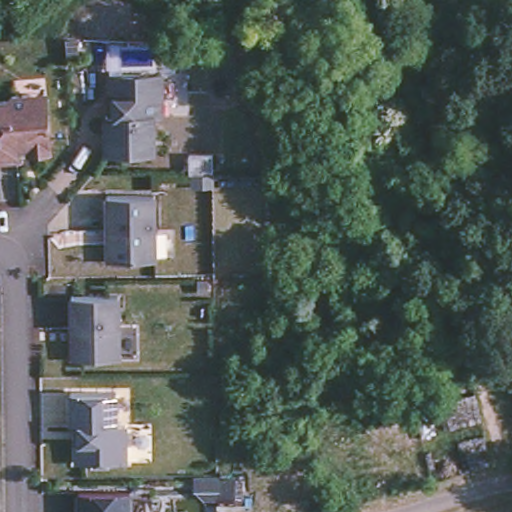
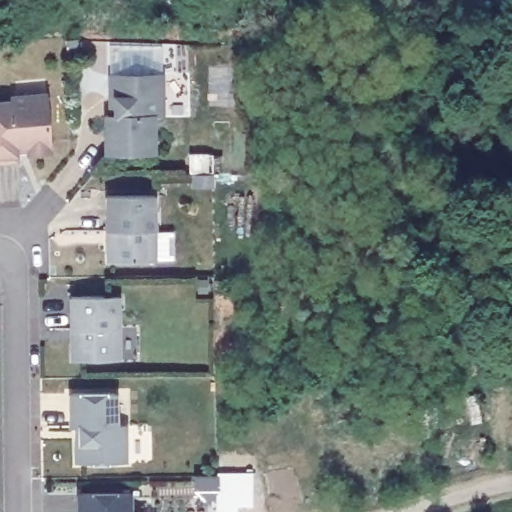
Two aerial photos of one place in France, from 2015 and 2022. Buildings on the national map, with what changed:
unchanged [(168,110),(159,110),(160,148),(111,148),(111,109),(115,109),(115,92),(115,69),(167,68),(168,110)]
unchanged [(37,148),(32,144),(22,145),(22,156),(0,158),(0,97),(16,95),(16,90),(32,89),(51,88),(52,94),(56,142),(51,147),(37,148)]
unchanged [(107,195),(154,194),(155,261),(107,261),(107,244),(107,230),(107,195)]
unchanged [(71,296),(118,296),(119,360),(72,360),(72,343),(71,329),(71,296)]
unchanged [(70,421),(70,388),(115,387),(116,420),(125,420),(126,457),(76,458),(75,436),(75,421),(70,421)]
unchanged [(135,512),(83,512),(83,483),(135,482),(135,512)]

